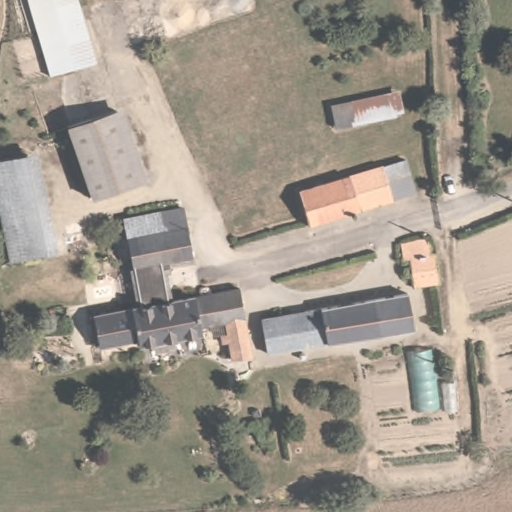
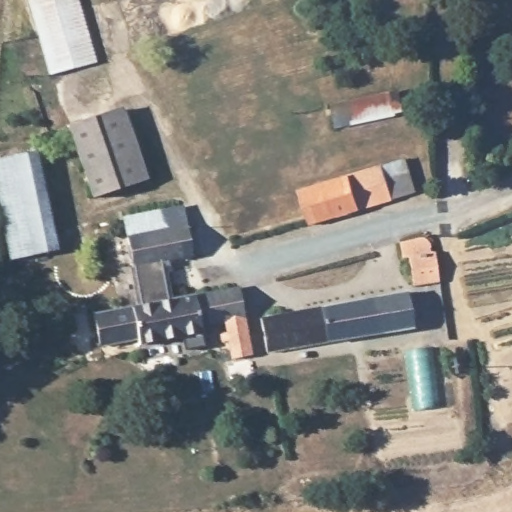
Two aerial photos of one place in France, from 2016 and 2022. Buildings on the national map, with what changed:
unchanged [(51,75),(29,0),(73,0),(92,62),(51,75)]
unchanged [(332,100),(401,90),(403,116),(335,125),(332,100)]
unchanged [(99,193),(75,121),(121,105),(125,112),(146,177),(122,185),(99,193)]
unchanged [(32,149),(48,250),(12,255),(0,185),(0,156),(32,149)]
unchanged [(300,191),(382,165),(404,159),(415,191),(392,199),(310,223),(300,191)]
unchanged [(185,203),(195,253),(132,270),(119,224),(185,203)]
unchanged [(428,238),(430,255),(437,254),(441,283),(415,287),(410,258),(403,260),(402,245),(428,238)]
unchanged [(240,287),(245,317),(201,325),(195,295),(240,287)]
unchanged [(407,292),(414,328),(267,352),(261,319),(407,292)]
unchanged [(203,332),(139,345),(138,339),(100,347),(94,316),(141,306),(142,306),(146,305),(169,301),(195,295),(201,325),(203,332)]
unchanged [(251,355),(233,359),(231,344),(223,345),(222,335),(229,334),(227,325),(246,321),(251,355)]

